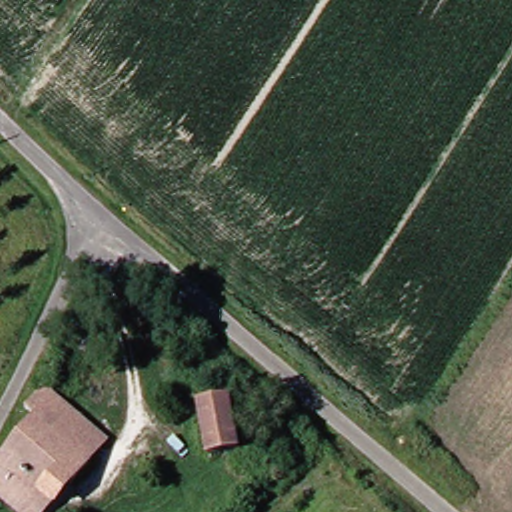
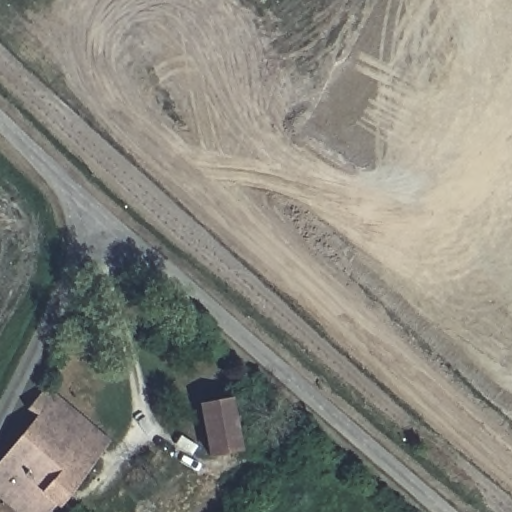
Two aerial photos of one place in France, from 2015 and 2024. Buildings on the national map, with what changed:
unchanged [(34,422),(23,413),(41,393),(100,442),(83,462),(34,422)]
unchanged [(224,400),(236,450),(205,457),(192,406),(224,400)]
unchanged [(34,422),(83,462),(40,512),(9,512),(0,503),(0,462),(34,422)]

